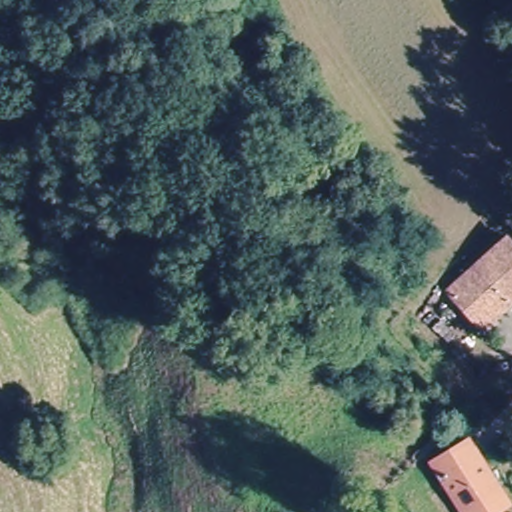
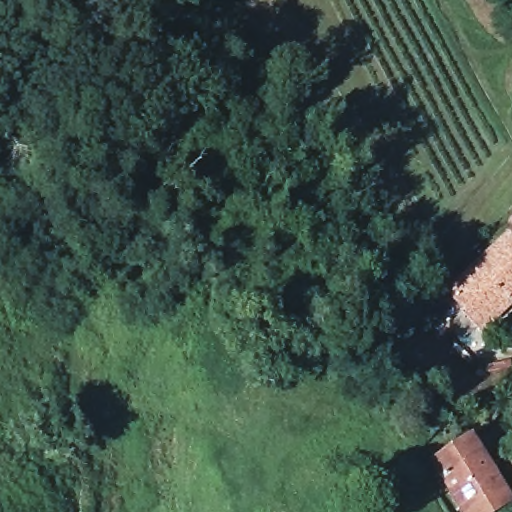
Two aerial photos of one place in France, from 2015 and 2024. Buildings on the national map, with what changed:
unchanged [(478,328),(446,292),(508,235),(512,239),(512,298),(478,328)]
unchanged [(481,512),(461,512),(459,510),(427,463),(469,436),(500,483),(507,495),(481,512)]

